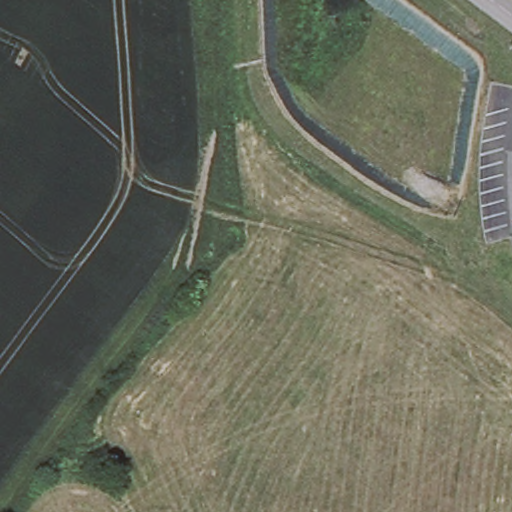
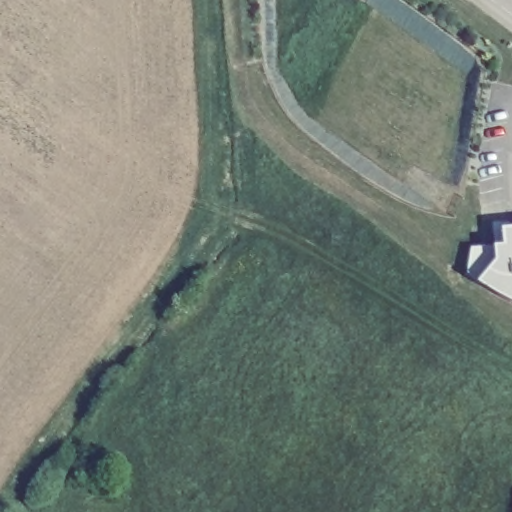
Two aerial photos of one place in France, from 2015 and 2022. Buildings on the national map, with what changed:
new [(470,276),(472,249),(496,247),(495,242),(506,242),(503,228),(512,228),(512,296),(470,276)]

